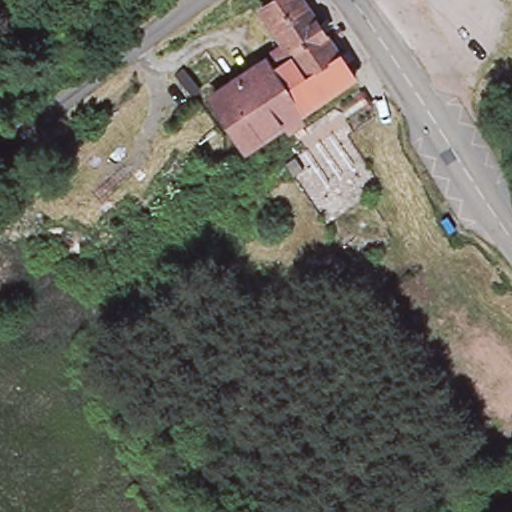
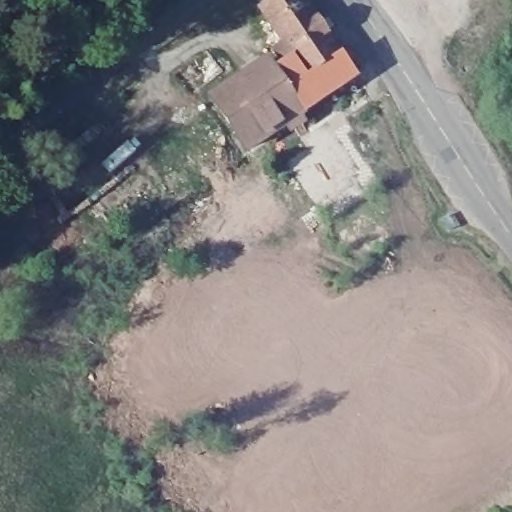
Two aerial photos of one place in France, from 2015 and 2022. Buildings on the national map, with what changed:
unchanged [(287,0),(307,0),(314,12),(354,83),(296,117),(272,74),(282,68),(274,52),(284,47),(276,34),(266,15),(265,13),(287,0)]
unchanged [(239,151),(208,96),(265,61),(272,74),(296,117),(245,148),(239,151)]

